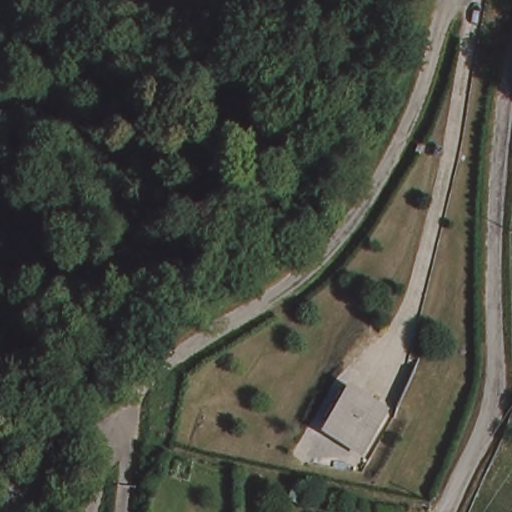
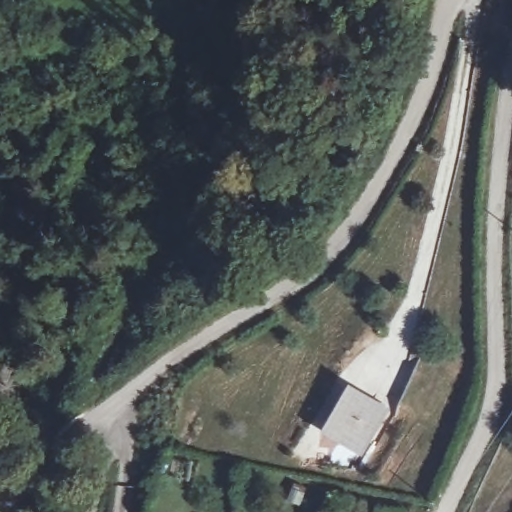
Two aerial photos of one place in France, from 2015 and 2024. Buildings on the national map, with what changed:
unchanged [(330,429),(333,396),(380,398),(377,431),(330,429)]

